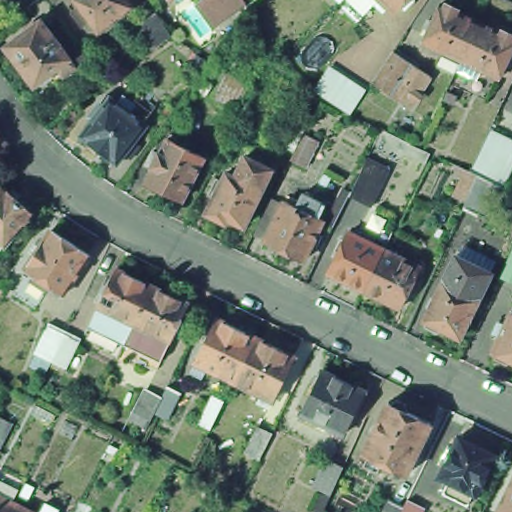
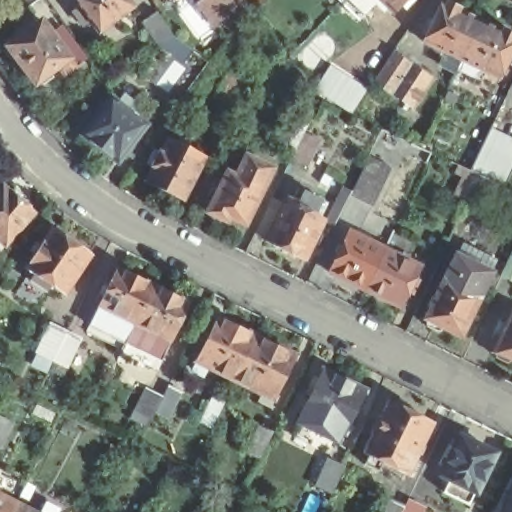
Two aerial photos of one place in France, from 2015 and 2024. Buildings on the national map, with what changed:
unchanged [(119,10),(114,15),(120,22),(108,31),(102,24),(86,36),(60,2),(62,0),(111,0),(119,10)]
unchanged [(202,5),(209,0),(250,0),(252,2),(235,14),(219,27),(202,5)]
unchanged [(339,0),(374,0),(359,15),(355,20),(337,2),(339,0)]
unchanged [(389,13),(376,0),(402,0),(389,13)]
unchanged [(419,41),(437,4),(439,5),(441,2),(455,9),(454,11),(474,21),(457,59),(419,41)]
unchanged [(144,50),(127,27),(140,17),(157,40),(144,50)]
unchanged [(54,76),(49,69),(25,85),(0,52),(0,44),(32,21),(67,67),(54,76)]
unchanged [(495,31),(497,29),(511,35),(510,39),(512,40),(495,77),(457,59),(474,21),(495,31)]
unchanged [(415,112),(396,100),(377,87),(398,57),(417,70),(436,82),(415,112)]
unchanged [(225,72),(251,85),(239,110),(213,98),(225,72)]
unchanged [(372,94),(356,117),(331,101),(318,93),(332,73),(344,81),(347,77),(372,94)]
unchanged [(112,169),(77,142),(89,125),(87,125),(97,111),(99,112),(106,103),(114,109),(119,102),(130,110),(125,117),(141,130),(112,169)]
unchanged [(300,155),(282,145),(297,114),(315,122),(300,155)]
unchanged [(470,175),(483,146),(490,132),(512,143),(512,175),(505,192),(499,189),(487,215),(466,206),(479,180),(470,175)]
unchanged [(199,157),(177,200),(142,182),(149,169),(146,167),(154,151),(157,153),(164,140),(199,157)]
unchanged [(325,148),(312,174),(297,166),(309,140),(325,148)]
unchanged [(267,170),(240,225),(224,217),(221,223),(202,214),(222,174),(230,177),(240,156),(267,170)]
unchanged [(329,232),(322,229),(340,192),(346,196),(356,177),(363,162),(386,173),(367,210),(345,200),(336,217),(329,232)]
unchanged [(21,196),(24,196),(31,202),(30,205),(35,209),(5,240),(0,246),(0,183),(3,180),(21,196)]
unchanged [(321,210),(314,223),(319,225),(299,265),(260,246),(280,206),(291,212),(298,198),(321,210)]
unchanged [(85,255),(59,293),(46,285),(42,291),(25,280),(30,274),(22,269),(47,230),(85,255)]
unchanged [(360,290),(324,272),(344,232),(379,250),(360,290)]
unchanged [(444,281),(456,256),(461,259),(467,248),(489,259),(486,265),(494,270),(492,275),(479,300),(444,281)]
unchanged [(416,267),(397,308),(360,290),(379,250),(416,267)]
unchanged [(501,274),(512,250),(512,279),(501,274)]
unchanged [(113,342),(112,345),(76,327),(80,320),(89,300),(107,263),(143,280),(179,298),(161,335),(151,355),(115,337),(113,342)]
unchanged [(479,300),(460,338),(441,328),(440,331),(437,332),(426,326),(425,324),(427,321),(424,320),(431,307),(429,306),(433,299),(434,300),(444,281),(479,300)]
unchanged [(512,314),(512,364),(505,360),(504,363),(491,357),(491,355),(489,353),(507,311),(512,314)]
unchanged [(230,385),(191,366),(212,322),(251,341),(230,385)]
unchanged [(67,366),(53,360),(37,352),(50,326),(66,334),(79,340),(67,366)]
unchanged [(290,360),(268,405),(230,385),(251,341),(290,360)]
unchanged [(339,378),(338,380),(360,390),(339,433),(297,412),(317,370),(322,372),(323,370),(339,378)]
unchanged [(181,392),(167,420),(155,413),(168,385),(181,392)]
unchanged [(211,428),(200,423),(213,395),(225,400),(211,428)]
unchanged [(359,465),(363,456),(359,454),(385,402),(386,403),(391,399),(400,404),(402,408),(401,411),(426,423),(401,474),(377,462),(373,471),(359,465)]
unchanged [(265,448),(260,458),(245,451),(258,425),(272,432),(265,448)]
unchanged [(485,460),(465,498),(463,497),(457,509),(434,497),(440,485),(430,480),(449,442),(485,460)]
unchanged [(334,489),(332,493),(316,486),(329,458),(345,466),(334,489)]
unchanged [(492,512),(512,469),(512,512),(492,512)]
unchanged [(423,512),(383,512),(390,500),(404,506),(407,500),(425,508),(423,512)]
unchanged [(8,512),(0,512),(0,503),(11,508),(8,512)]
unchanged [(8,512),(11,508),(19,512),(8,512)]

